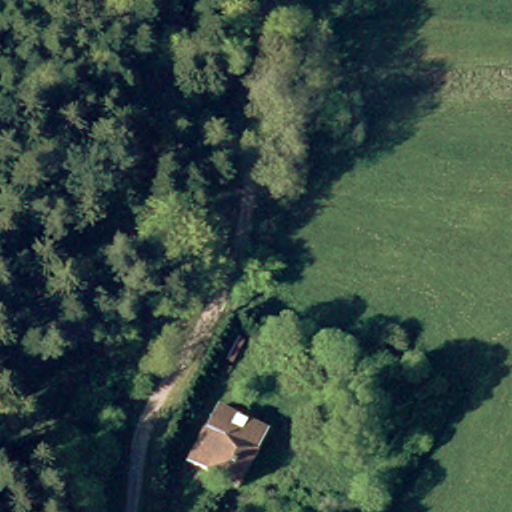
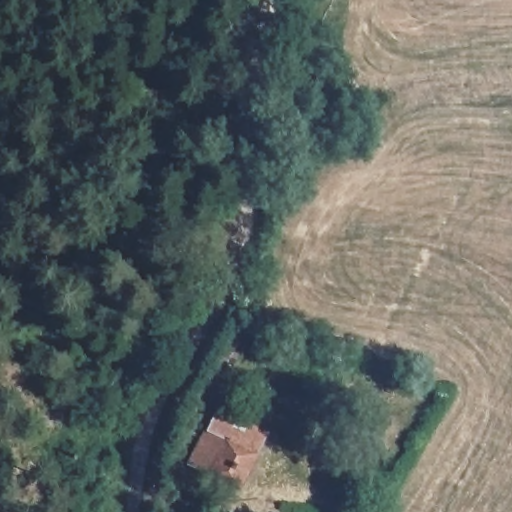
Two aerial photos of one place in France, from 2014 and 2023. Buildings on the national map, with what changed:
unchanged [(261,419),(232,474),(186,452),(216,396),(261,419)]
unchanged [(228,481),(246,489),(294,509),(293,512),(213,512),(222,494),(228,481)]

